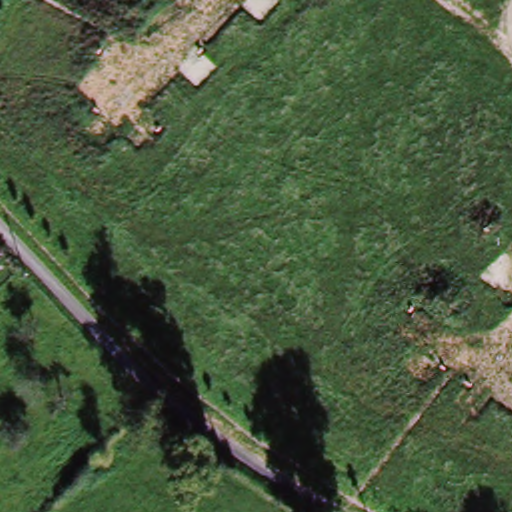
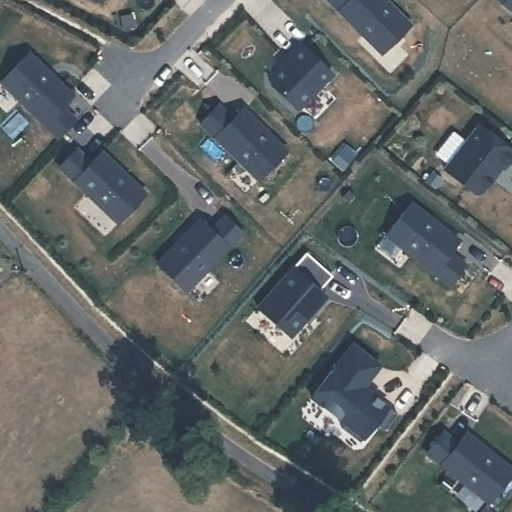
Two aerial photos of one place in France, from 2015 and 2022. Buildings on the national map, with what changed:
new [(93,0),(101,0),(99,3),(93,0)]
new [(371,44),(326,0),(384,0),(399,15),(371,44)]
new [(512,0),(512,13),(496,0),(512,0)]
new [(269,75),(286,57),(285,55),(298,41),(331,73),(297,109),(269,82),(269,75)]
new [(28,52),(72,95),(61,106),(76,120),(58,138),(0,82),(0,81),(28,52)]
new [(216,106),(230,120),(241,109),(284,152),(256,181),(198,124),(216,106)]
new [(512,154),(512,155),(501,168),(499,167),(479,192),(472,193),(442,169),(476,125),(512,154)]
new [(75,149),(90,163),(100,152),(144,195),(116,224),(58,167),(75,149)]
new [(410,202),(458,240),(449,252),(464,265),(449,284),(385,234),(410,202)]
new [(199,219),(210,229),(224,215),(241,233),(185,291),(156,262),(199,219)]
new [(305,253),(331,275),(318,290),(324,296),(290,335),(257,307),(305,253)]
new [(351,344),(379,365),(359,391),(366,396),(369,392),(397,414),(384,431),(371,421),(356,440),(341,428),(344,423),(310,396),(351,344)]
new [(457,442),(465,432),(512,470),(512,472),(488,502),(426,452),(443,431),(457,442)]

